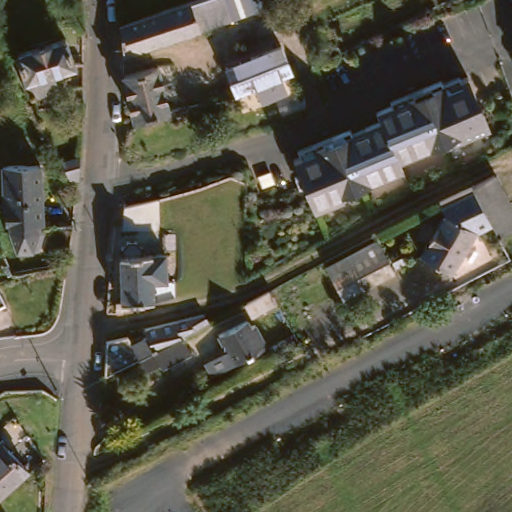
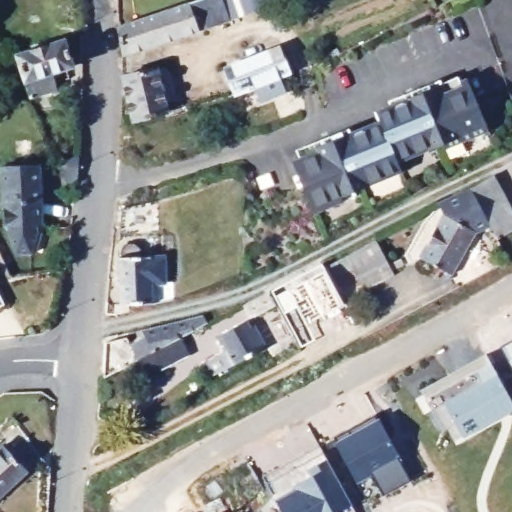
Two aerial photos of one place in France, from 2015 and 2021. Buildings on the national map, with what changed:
unchanged [(256,0),(258,6),(234,15),(119,54),(115,25),(139,17),(187,0),(256,0)]
unchanged [(66,66),(48,71),(52,89),(24,97),(10,51),(57,37),(66,66)]
unchanged [(275,77),(281,92),(256,102),(250,86),(230,93),(221,69),(277,48),(287,73),(275,77)]
unchanged [(155,68),(165,111),(153,114),(127,119),(119,77),(155,68)]
unchanged [(380,119),(409,107),(407,103),(415,99),(427,94),(443,87),(445,92),(462,85),(469,82),(490,134),(445,152),(443,147),(400,165),(405,175),(345,199),(347,204),(319,216),(297,164),(305,162),(321,155),(320,150),(356,135),(358,139),(385,128),(380,119)]
unchanged [(56,180),(45,159),(71,154),(69,179),(56,180)]
unchanged [(40,159),(41,216),(37,217),(37,224),(30,244),(17,244),(10,220),(5,220),(3,159),(40,159)]
unchanged [(512,211),(512,228),(500,235),(470,186),(490,174),(512,211)]
unchanged [(127,214),(161,200),(161,228),(125,229),(127,214)]
unchanged [(478,228),(453,272),(422,255),(448,211),(478,228)]
unchanged [(377,236),(395,270),(391,273),(368,286),(359,270),(340,280),(330,261),(368,241),(377,236)]
unchanged [(157,253),(157,281),(147,282),(147,301),(128,302),(128,318),(112,323),(112,297),(117,297),(117,256),(157,253)]
demolished [(331,290),(302,305),(295,291),(322,275),(331,290)]
unchanged [(280,308),(281,311),(254,325),(246,312),(250,310),(274,298),(280,308)]
unchanged [(160,373),(159,368),(145,375),(139,364),(107,379),(110,345),(130,341),(131,346),(149,344),(147,331),(151,331),(209,321),(210,330),(180,344),(189,358),(160,373)]
unchanged [(266,352),(231,371),(222,356),(228,353),(221,341),(251,325),(266,352)]
new [(512,341),(512,364),(502,347),(512,341)]
new [(455,425),(442,432),(425,400),(421,392),(487,357),(492,365),(512,404),(512,412),(462,438),(455,425)]
new [(410,480),(383,493),(370,502),(357,482),(335,438),(377,417),(410,480)]
unchanged [(0,498),(0,449),(3,446),(27,474),(0,498)]
new [(339,512),(283,512),(276,499),(296,488),(294,485),(312,475),(307,468),(327,459),(351,505),(339,512)]

